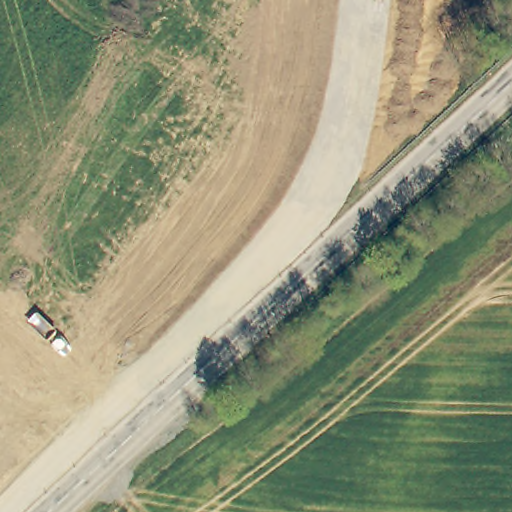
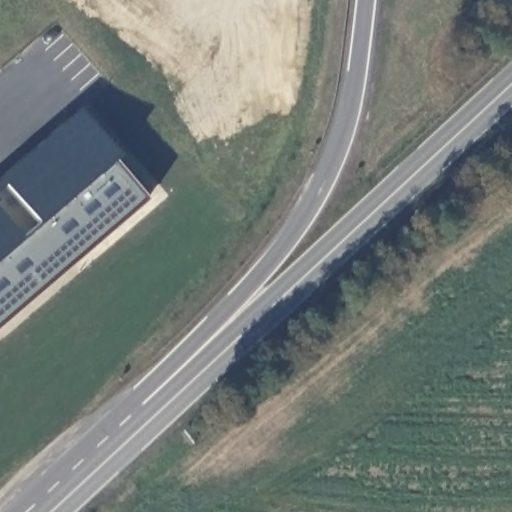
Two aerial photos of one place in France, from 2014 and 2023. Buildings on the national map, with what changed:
new [(0,178),(80,111),(119,156),(114,160),(146,200),(0,327),(0,178)]
demolished [(53,130),(12,298),(0,325),(0,208),(3,201),(39,123),(53,130)]
demolished [(53,130),(81,144),(12,298),(53,130)]

